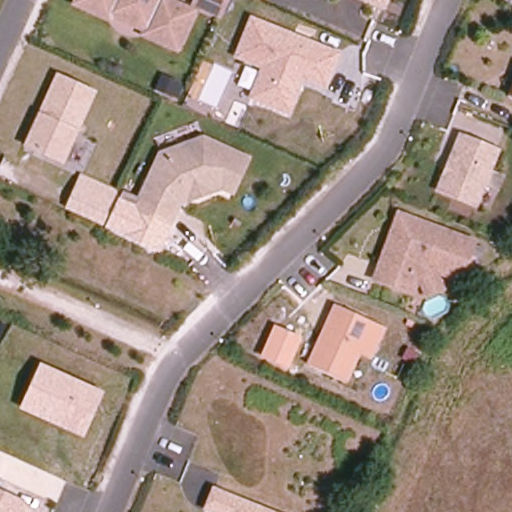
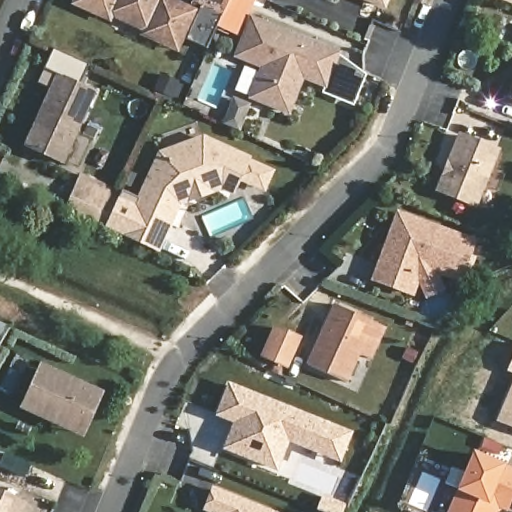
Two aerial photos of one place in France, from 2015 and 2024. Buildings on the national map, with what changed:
unchanged [(149,32),(115,17),(112,22),(77,7),(79,2),(80,0),(166,0),(197,13),(183,46),(181,51),(147,37),(149,32)]
unchanged [(192,3),(194,0),(231,0),(222,18),(192,3)]
unchanged [(376,0),(389,0),(387,4),(376,0)]
unchanged [(329,89),(305,80),(290,116),(249,99),(260,70),(234,59),(251,15),(342,51),(329,89)]
unchanged [(62,166),(22,146),(56,71),(99,90),(62,166)]
unchanged [(457,198),(440,191),(462,136),(486,145),(457,198)]
unchanged [(172,224),(167,222),(137,210),(142,200),(161,155),(203,139),(248,159),(232,193),(222,188),(181,205),(172,224)]
unchanged [(499,150),(477,206),(457,198),(486,145),(499,150)]
unchanged [(80,173),(142,200),(137,210),(167,222),(172,224),(160,254),(124,239),(124,236),(64,209),(80,173)]
unchanged [(441,231),(406,294),(375,285),(391,240),(399,216),(406,219),(441,231)]
unchanged [(414,297),(406,294),(441,231),(477,243),(463,282),(437,273),(447,292),(428,300),(419,282),(414,297)]
unchanged [(312,365),(337,305),(375,321),(386,326),(373,356),(361,351),(349,380),(312,365)]
unchanged [(302,337),(290,365),(266,355),(277,327),(302,337)]
new [(512,361),(512,372),(508,370),(512,361)]
unchanged [(82,437),(19,409),(41,362),(104,391),(82,437)]
new [(340,465),(288,443),(277,472),(221,450),(232,423),(214,416),(228,382),(352,432),(340,465)]
new [(512,388),(512,409),(505,406),(512,388)]
new [(497,509),(496,512),(446,512),(455,488),(456,490),(472,450),(504,465),(512,468),(512,500),(507,512),(505,512),(497,509)]
unchanged [(219,508),(208,502),(217,485),(227,490),(280,512),(227,512),(219,508)]
unchanged [(27,505),(23,512),(0,512),(0,494),(27,505)]

